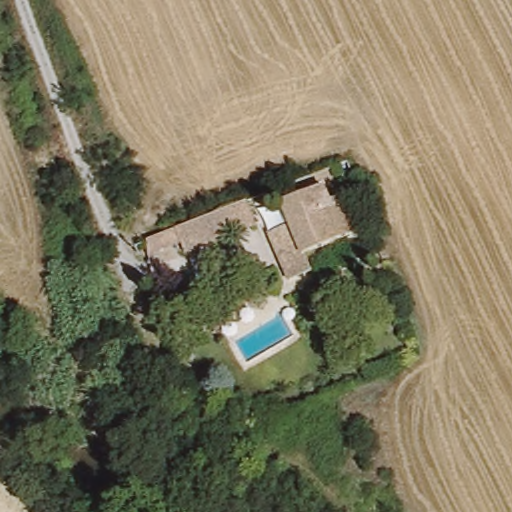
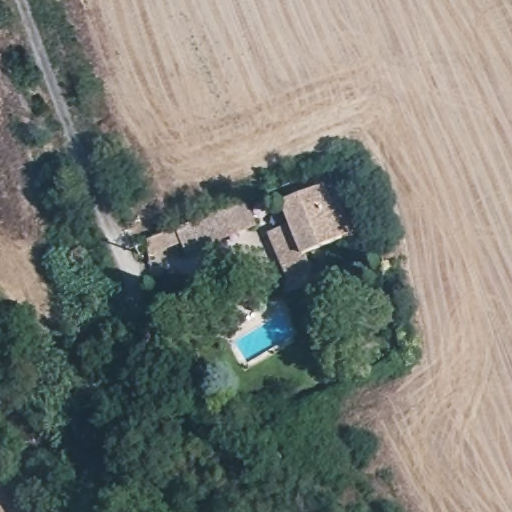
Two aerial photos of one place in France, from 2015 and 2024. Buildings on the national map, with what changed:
unchanged [(311,251),(314,276),(285,284),(266,236),(289,223),(282,206),(328,187),(334,200),(342,197),(352,240),(311,251)]
unchanged [(251,199),(264,225),(189,257),(183,247),(151,258),(145,240),(251,199)]

